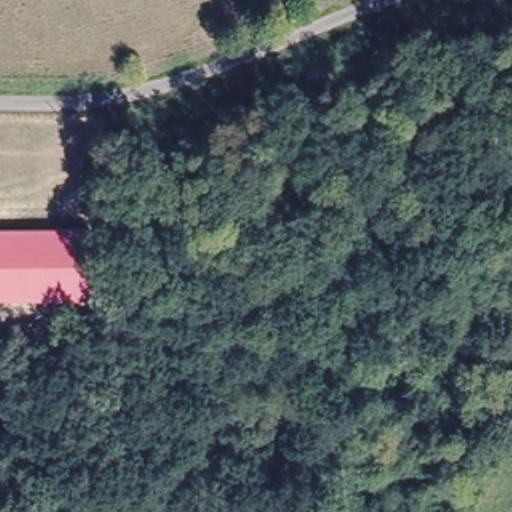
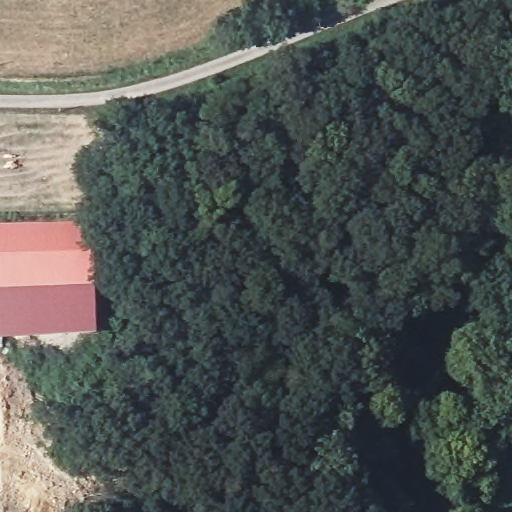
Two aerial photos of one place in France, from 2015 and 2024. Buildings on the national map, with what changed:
unchanged [(84,225),(86,293),(0,294),(0,227),(84,225)]
new [(86,293),(84,225),(95,225),(96,292),(96,341),(0,342),(0,293),(86,293)]

